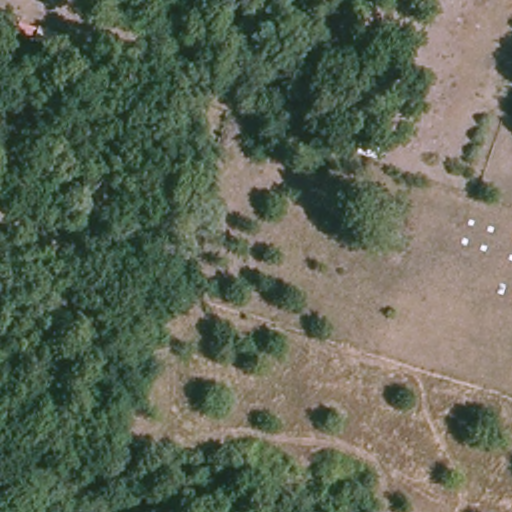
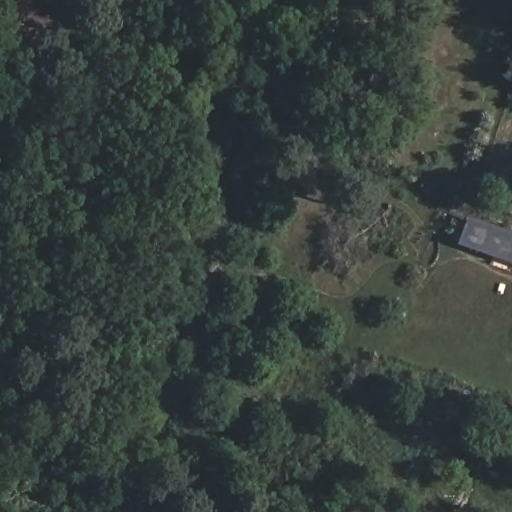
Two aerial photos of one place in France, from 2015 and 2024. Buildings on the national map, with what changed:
new [(462,244),(471,217),(512,232),(512,262),(462,244)]

